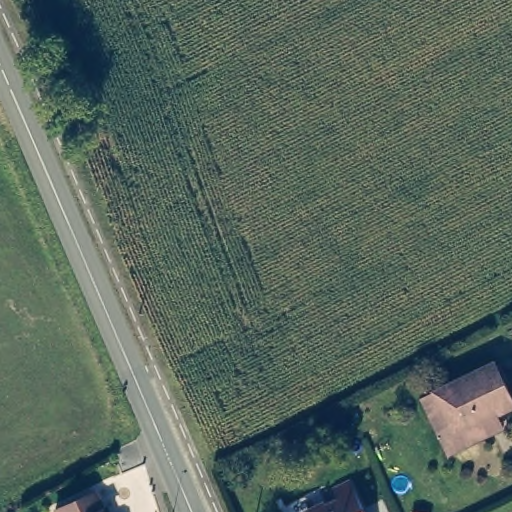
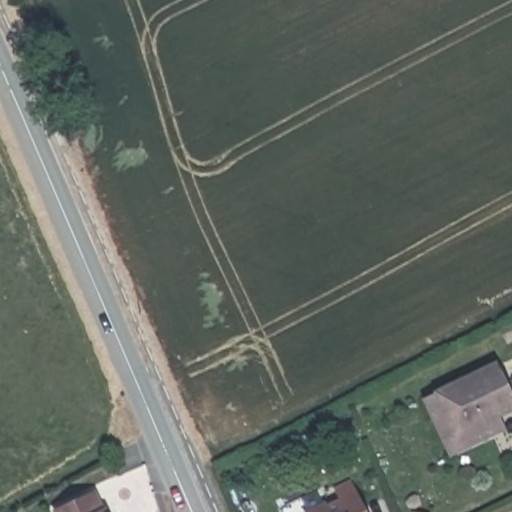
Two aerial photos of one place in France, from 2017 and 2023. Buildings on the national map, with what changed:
unchanged [(452,429),(432,389),(490,358),(510,401),(491,411),(452,429)]
unchanged [(497,424),(446,450),(420,396),(432,389),(452,429),(491,411),(497,424)]
unchanged [(334,494),(330,486),(350,478),(366,512),(302,512),(300,508),(334,494)]
unchanged [(92,509),(96,508),(97,512),(54,512),(85,496),(92,509)]

